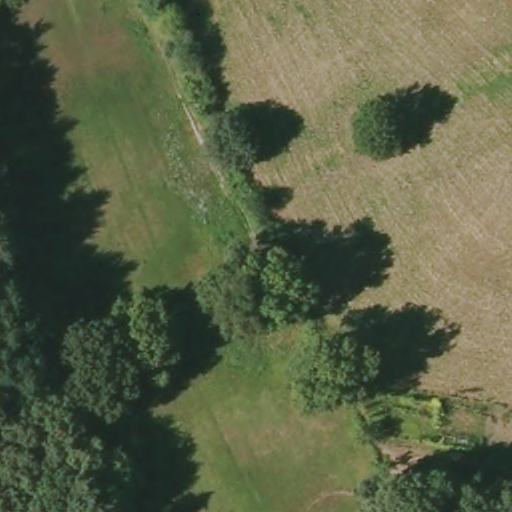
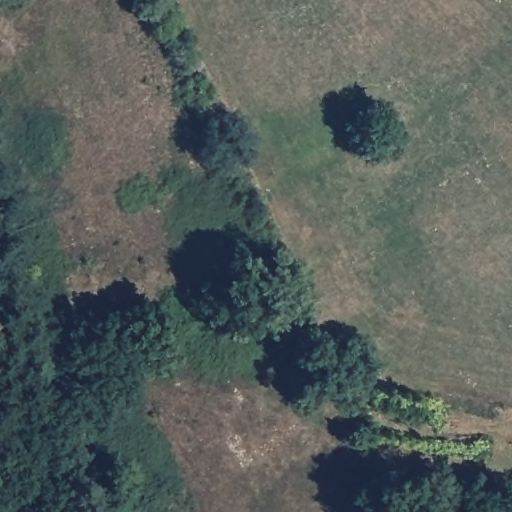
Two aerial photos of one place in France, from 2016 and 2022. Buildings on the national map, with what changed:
[]

